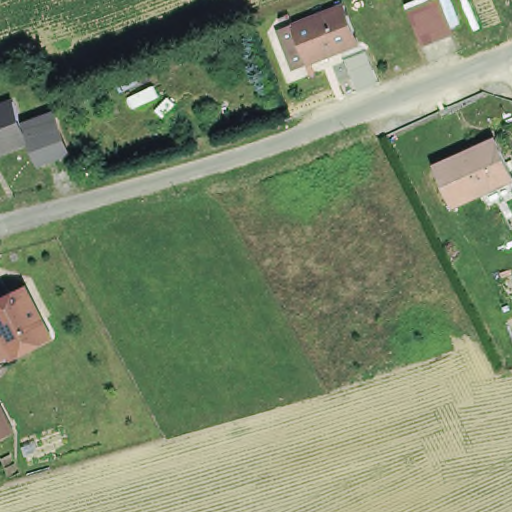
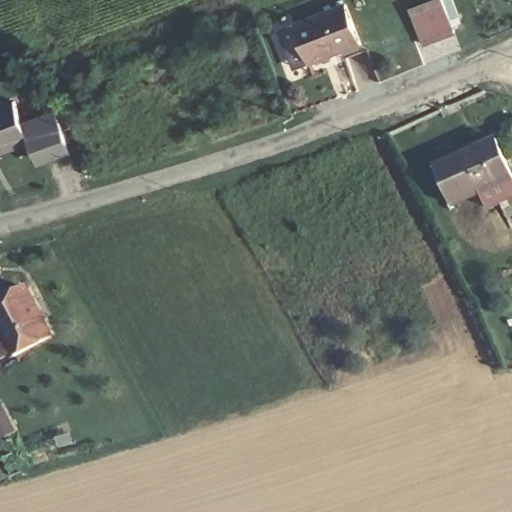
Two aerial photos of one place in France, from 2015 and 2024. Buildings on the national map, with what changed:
unchanged [(410,9),(432,0),(442,0),(454,31),(424,44),(410,9)]
unchanged [(301,24),(299,21),(348,1),(363,43),(314,61),(314,59),(301,64),(288,29),(301,24)]
unchanged [(0,150),(0,104),(16,99),(26,124),(32,138),(0,150)]
unchanged [(68,149),(41,160),(32,138),(26,124),(54,113),(68,149)]
unchanged [(492,139),(512,176),(512,177),(453,204),(434,165),(492,139)]
unchanged [(56,336),(0,360),(0,295),(29,281),(56,336)]

